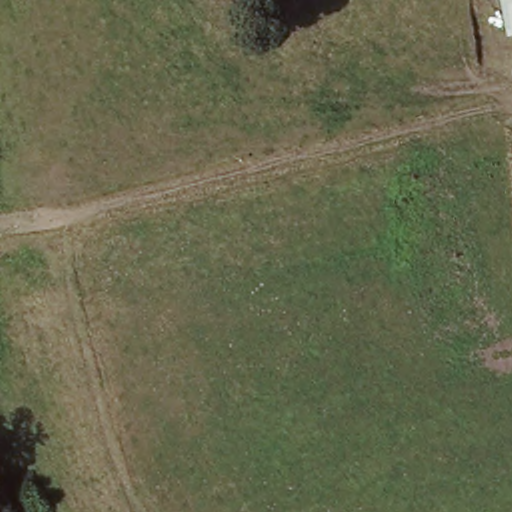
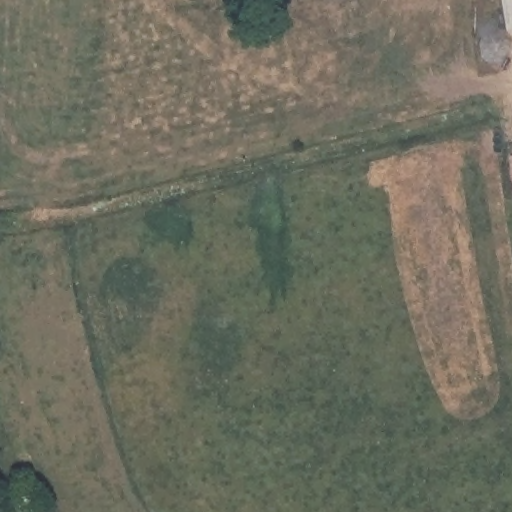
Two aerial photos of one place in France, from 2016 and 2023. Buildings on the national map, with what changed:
unchanged [(498,0),(512,0),(512,29),(504,31),(498,0)]

